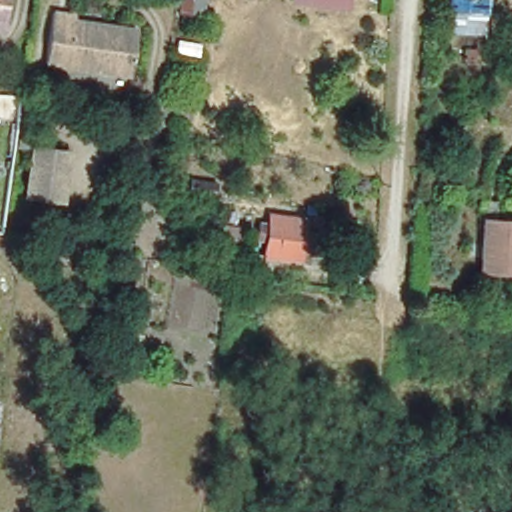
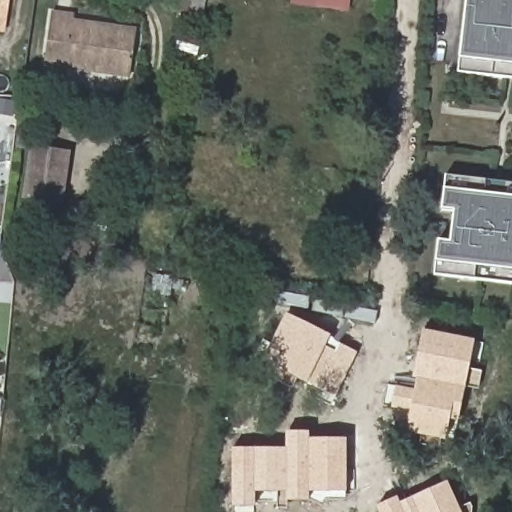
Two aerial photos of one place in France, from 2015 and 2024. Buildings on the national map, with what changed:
unchanged [(0,9),(0,0),(10,0),(9,10),(0,9)]
unchanged [(198,20),(190,19),(187,27),(171,22),(174,0),(202,0),(198,20)]
demolished [(487,22),(450,21),(451,0),(488,0),(487,22)]
new [(460,57),(467,0),(512,0),(512,77),(458,71),(460,57)]
unchanged [(0,33),(0,9),(9,10),(5,34),(0,33)]
unchanged [(105,71),(104,74),(46,64),(54,14),(76,17),(75,25),(111,31),(105,71)]
unchanged [(138,36),(131,78),(104,74),(105,71),(111,31),(138,36)]
unchanged [(197,49),(192,61),(172,52),(177,40),(197,49)]
unchanged [(69,153),(62,203),(27,198),(34,148),(69,153)]
unchanged [(207,182),(203,195),(186,190),(190,176),(207,182)]
new [(436,261),(438,242),(450,244),(456,210),(442,209),(446,189),(447,177),(512,185),(512,283),(435,275),(436,261)]
demolished [(304,220),(299,263),(261,258),(267,215),(304,220)]
unchanged [(247,221),(245,239),(252,240),(250,267),(223,265),(227,220),(247,221)]
demolished [(475,272),(478,222),(512,224),(512,274),(475,272)]
new [(360,353),(338,398),(267,361),(288,315),(360,353)]
new [(476,342),(457,442),(396,432),(399,409),(391,408),(395,387),(413,390),(424,332),(476,342)]
new [(289,450),(290,441),(347,440),(346,501),(308,502),(308,491),(256,492),(255,508),(235,508),(235,450),(289,450)]
new [(383,512),(383,511),(447,482),(461,512),(383,512)]

